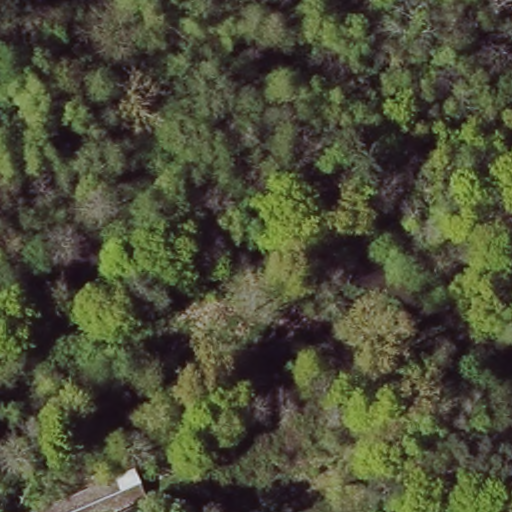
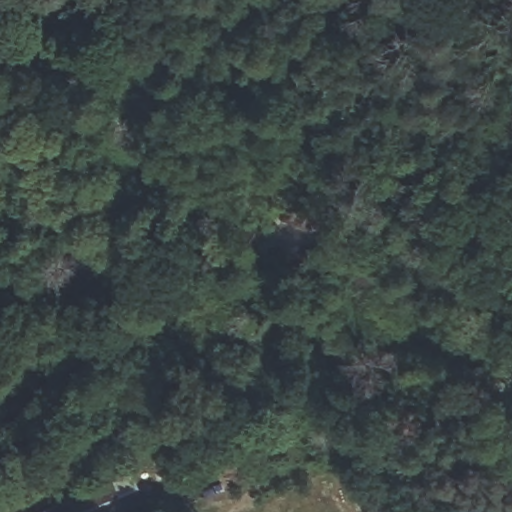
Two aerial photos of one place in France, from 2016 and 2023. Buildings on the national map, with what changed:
unchanged [(159,512),(134,512),(133,510),(129,512),(52,512),(139,469),(159,512)]

